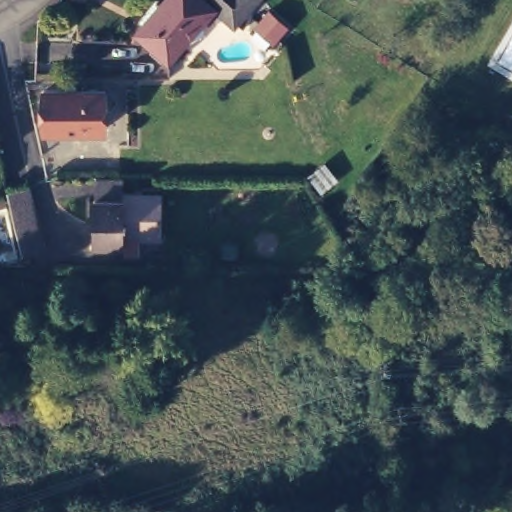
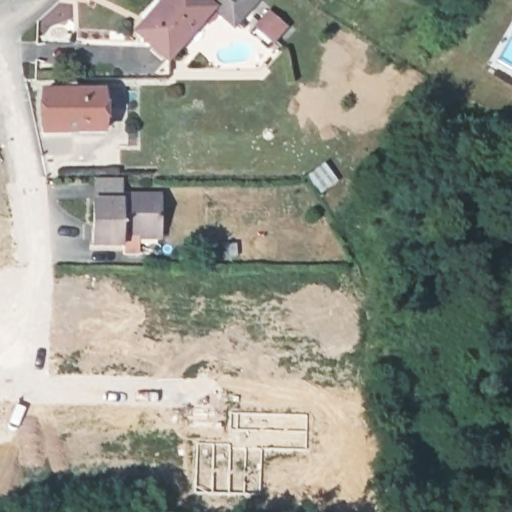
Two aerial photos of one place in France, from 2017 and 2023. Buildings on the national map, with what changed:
unchanged [(235,24),(215,7),(169,59),(138,31),(165,0),(256,0),(235,24)]
unchanged [(105,130),(45,131),(45,91),(70,91),(70,84),(77,84),(77,90),(105,90),(105,130)]
unchanged [(123,234),(123,240),(93,240),(94,195),(123,195),(123,190),(162,190),(162,229),(162,234),(123,234)]

